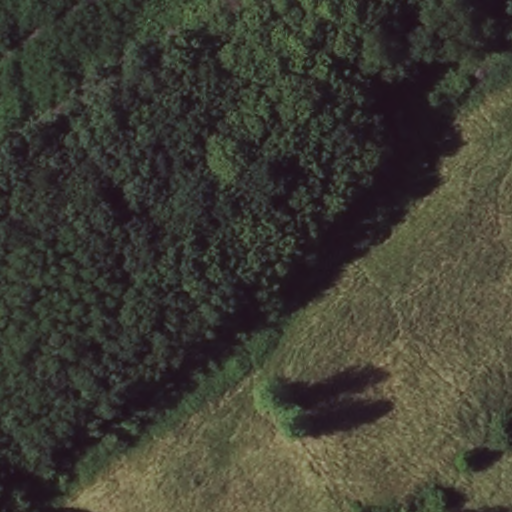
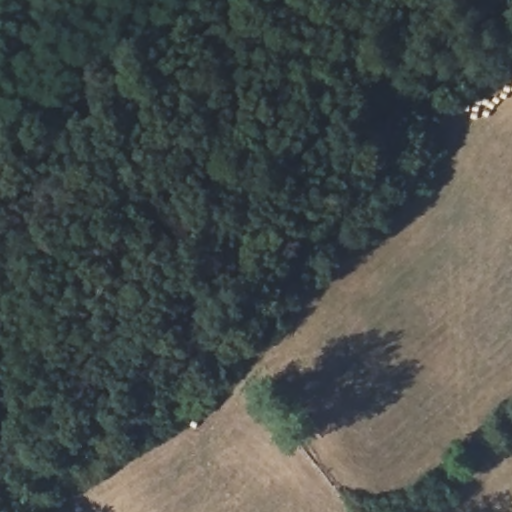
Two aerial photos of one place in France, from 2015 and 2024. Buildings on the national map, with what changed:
[]

